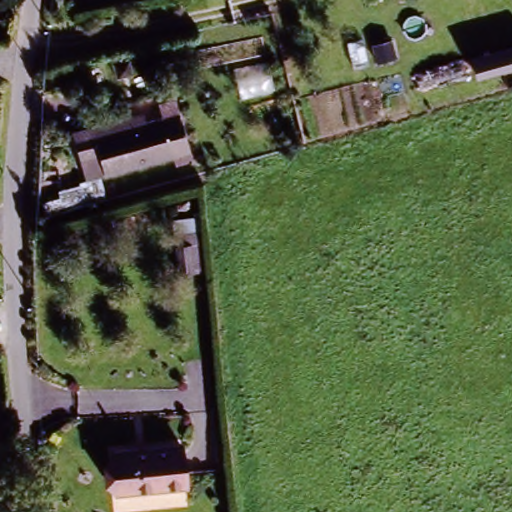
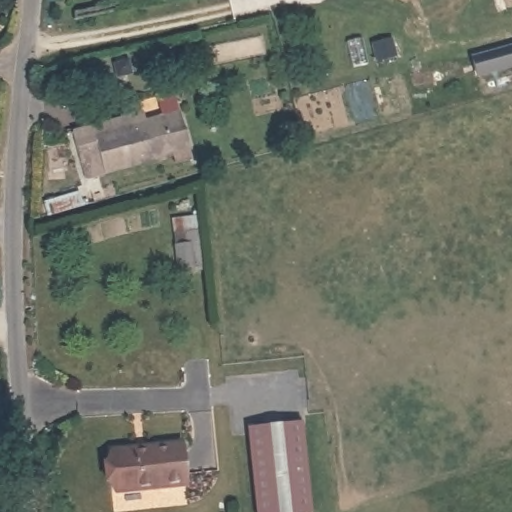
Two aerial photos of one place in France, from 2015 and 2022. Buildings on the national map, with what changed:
unchanged [(83,184),(68,135),(89,129),(92,138),(161,118),(156,101),(171,96),(190,162),(174,167),(171,159),(83,184)]
new [(302,422),(312,512),(256,512),(247,428),(302,422)]
unchanged [(100,495),(100,447),(182,440),(183,487),(100,495)]

